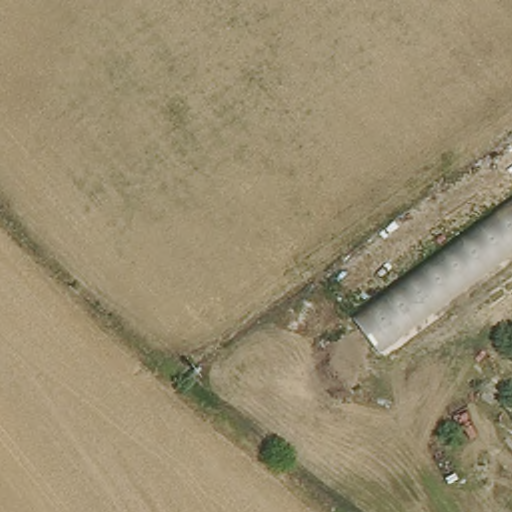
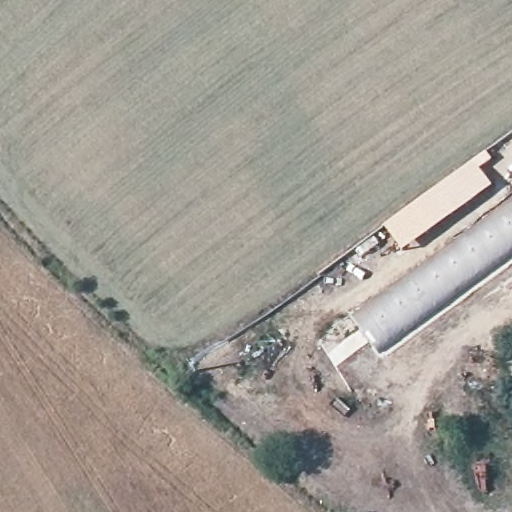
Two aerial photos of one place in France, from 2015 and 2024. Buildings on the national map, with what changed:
new [(485,151),(491,160),(480,169),(493,186),(403,253),(384,226),(485,151)]
unchanged [(352,321),(512,207),(512,247),(376,353),(352,321)]

